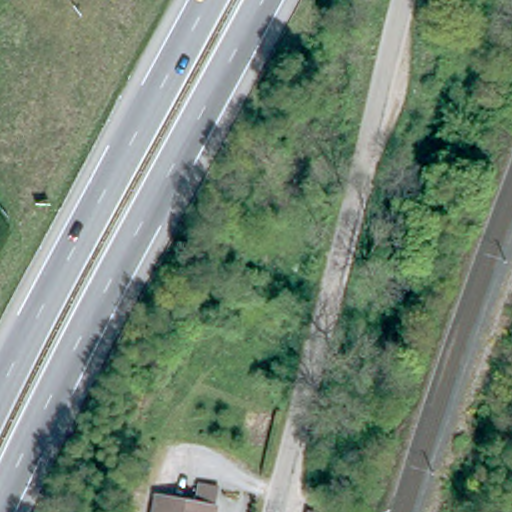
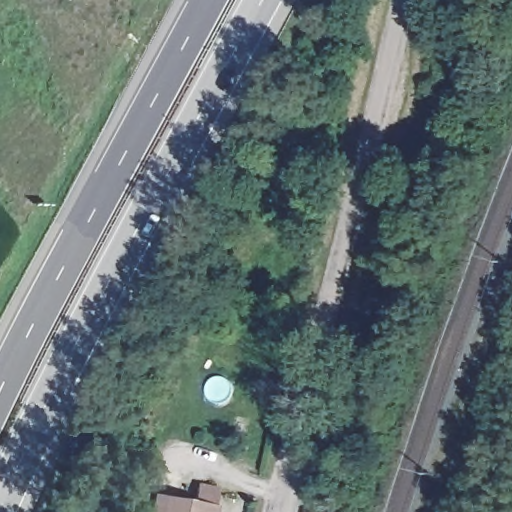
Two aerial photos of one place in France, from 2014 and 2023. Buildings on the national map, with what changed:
unchanged [(149,503),(195,512),(198,490),(220,494),(216,512),(147,512),(149,503)]

